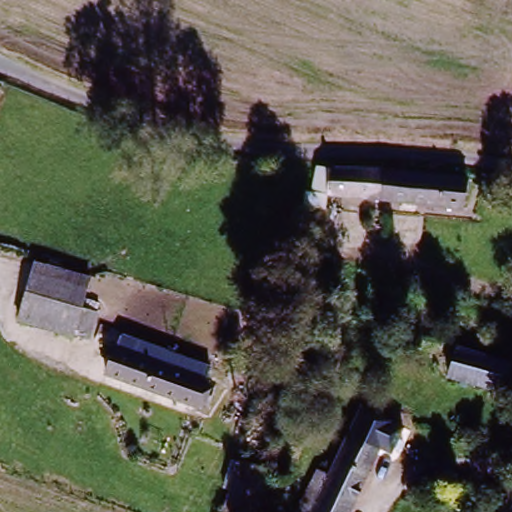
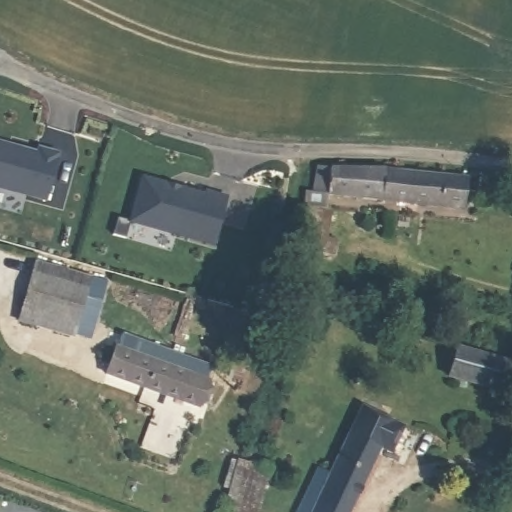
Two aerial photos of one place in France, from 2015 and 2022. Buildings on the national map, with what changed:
new [(37,153),(39,147),(61,153),(47,203),(0,189),(0,143),(37,153)]
unchanged [(334,194),(332,206),(308,204),(310,187),(320,187),(323,166),(470,179),(466,205),(370,197),(334,194)]
new [(229,197),(215,247),(128,224),(142,177),(229,197)]
unchanged [(332,206),(336,207),(333,237),(345,239),(343,254),(316,251),(317,236),(309,235),(308,204),(332,206)]
unchanged [(84,277),(79,306),(96,310),(90,339),(18,326),(30,266),(84,277)]
new [(106,282),(90,339),(96,310),(79,306),(82,289),(84,277),(106,282)]
unchanged [(105,371),(113,345),(116,335),(203,362),(200,372),(192,397),(105,371)]
unchanged [(496,391),(444,378),(451,350),(504,362),(496,391)]
unchanged [(299,498),(314,464),(330,471),(344,439),(373,453),(346,512),(313,512),(316,506),(299,498)]
unchanged [(226,512),(240,455),(270,462),(257,512),(226,512)]

